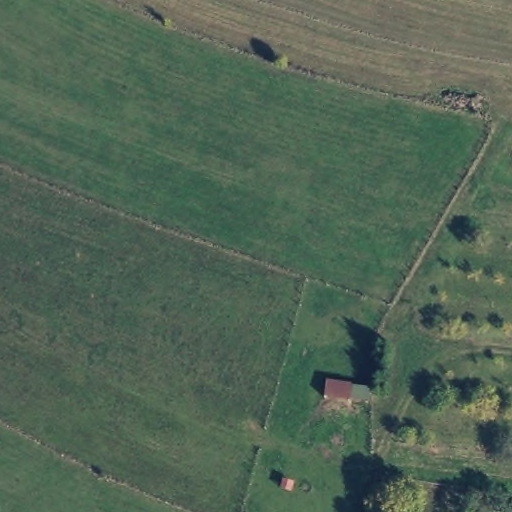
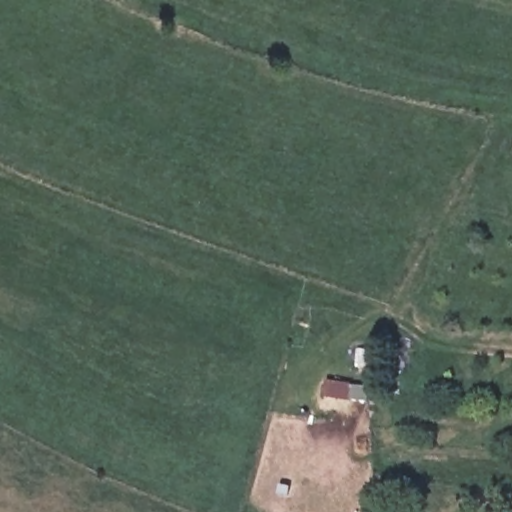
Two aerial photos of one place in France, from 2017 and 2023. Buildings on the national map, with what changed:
unchanged [(350,380),(350,400),(321,397),(324,374),(350,380)]

